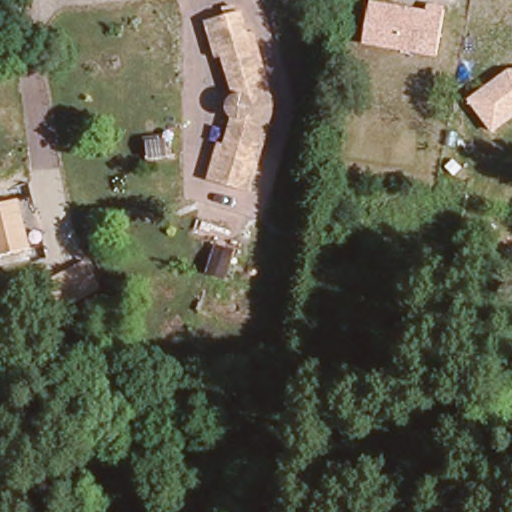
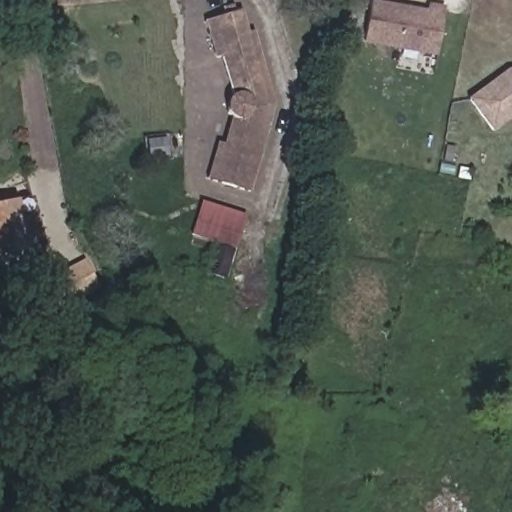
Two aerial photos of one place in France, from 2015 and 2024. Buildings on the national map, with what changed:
unchanged [(436,56),(363,44),(371,0),(424,9),(425,2),(444,5),(436,56)]
unchanged [(228,141),(236,114),(234,113),(232,113),(230,112),(229,111),(227,110),(226,109),(224,106),(223,103),(223,100),(223,97),(223,96),(222,93),(224,93),(225,91),(226,90),(228,89),(229,88),(231,87),(233,86),(235,86),(225,47),(218,49),(208,13),(244,3),(250,24),(256,23),(260,38),(277,96),(268,98),(262,120),(270,123),(252,187),(212,176),(222,139),(228,141)]
unchanged [(465,100),(507,69),(512,69),(512,119),(492,133),(465,100)]
unchanged [(19,199),(30,244),(0,252),(0,204),(19,199)]
new [(246,215),(236,250),(191,237),(201,202),(246,215)]
unchanged [(90,256),(104,281),(65,301),(52,276),(90,256)]

